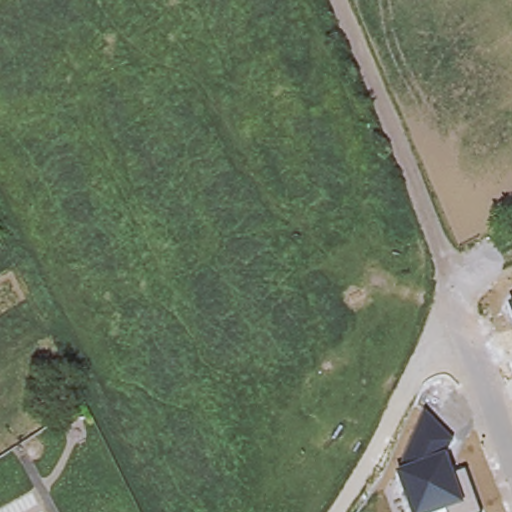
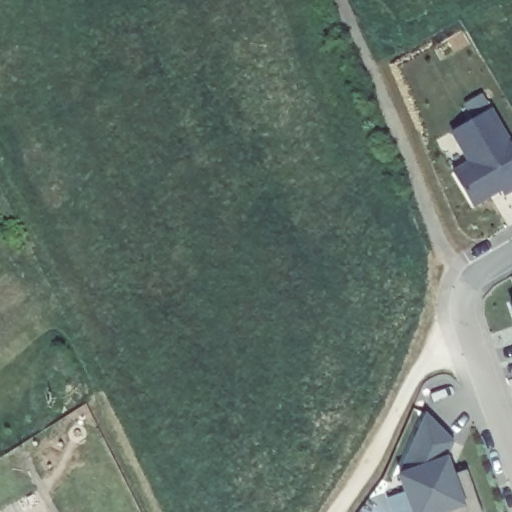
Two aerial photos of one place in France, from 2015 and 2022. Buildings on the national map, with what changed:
new [(466,162),(449,132),(494,110),(512,144),(512,191),(503,197),(501,192),(472,207),(452,169),(466,162)]
unchanged [(512,305),(512,313),(509,306),(512,305)]
unchanged [(398,475),(426,412),(454,442),(448,457),(455,476),(466,471),(481,512),(410,512),(398,475)]

